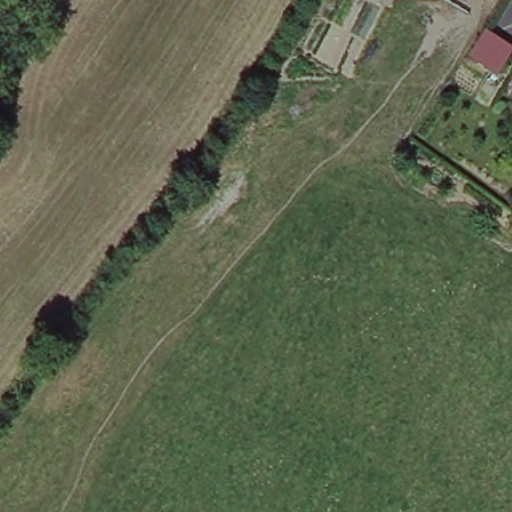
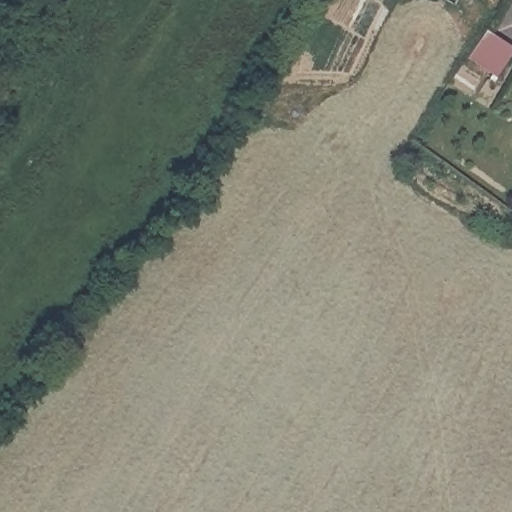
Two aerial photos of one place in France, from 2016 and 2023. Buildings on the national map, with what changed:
unchanged [(464,56),(484,27),(512,45),(512,50),(494,77),(464,56)]

